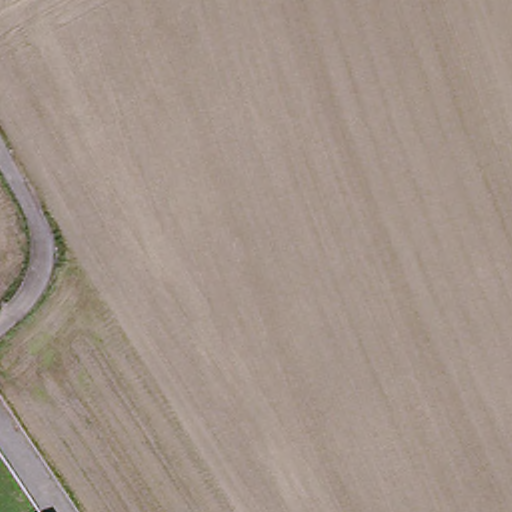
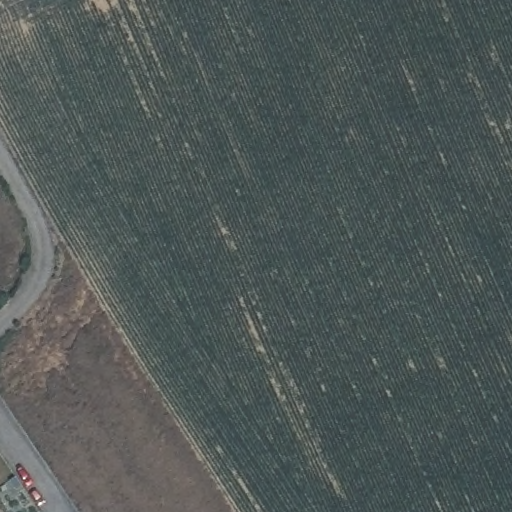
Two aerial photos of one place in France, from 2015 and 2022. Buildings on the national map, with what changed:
unchanged [(43,512),(40,512),(42,511),(43,512)]

